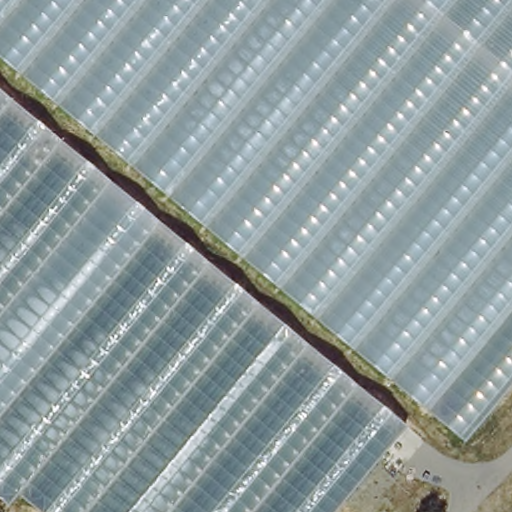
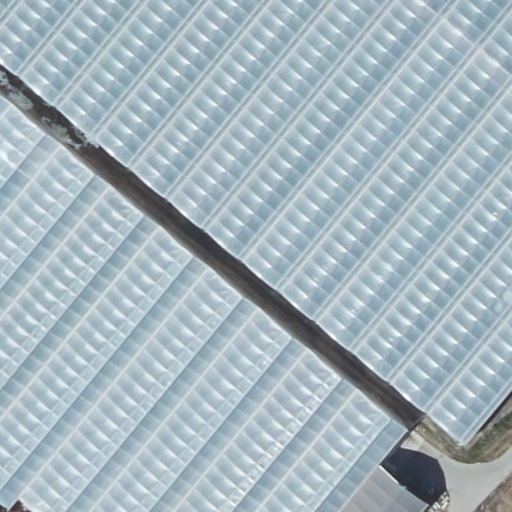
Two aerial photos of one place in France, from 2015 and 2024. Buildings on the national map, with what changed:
unchanged [(0,55),(0,0),(512,0),(512,393),(468,446),(0,55)]
unchanged [(334,512),(36,512),(14,495),(7,505),(0,500),(0,89),(407,425),(334,512)]
new [(379,459),(427,501),(418,512),(334,512),(379,459)]

